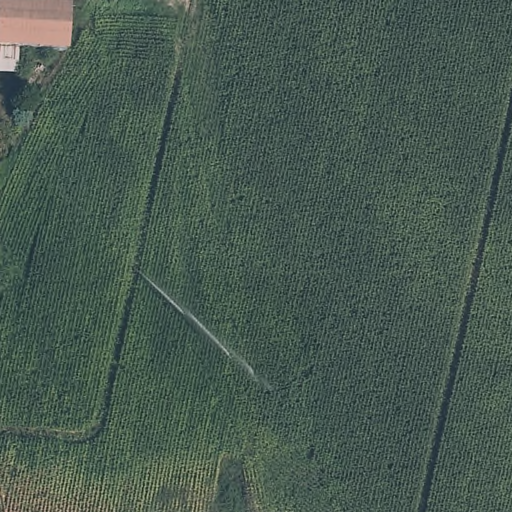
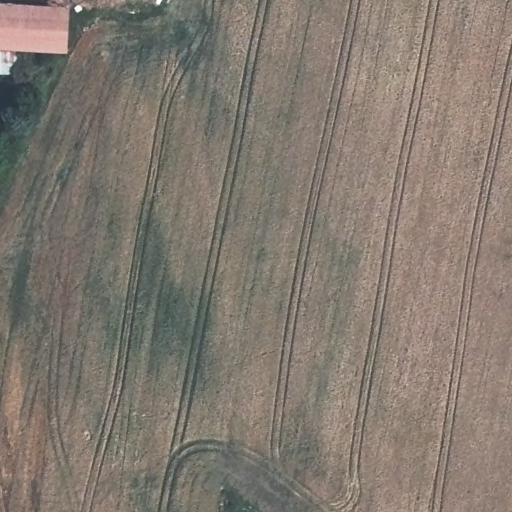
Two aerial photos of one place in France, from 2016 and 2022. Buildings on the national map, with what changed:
unchanged [(69,4),(66,52),(19,50),(16,75),(0,74),(0,2),(69,4)]

